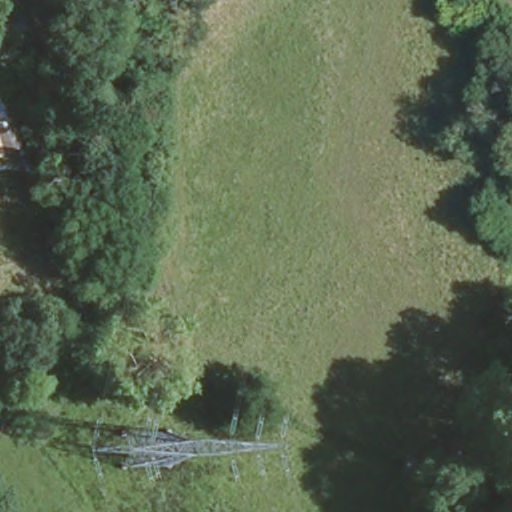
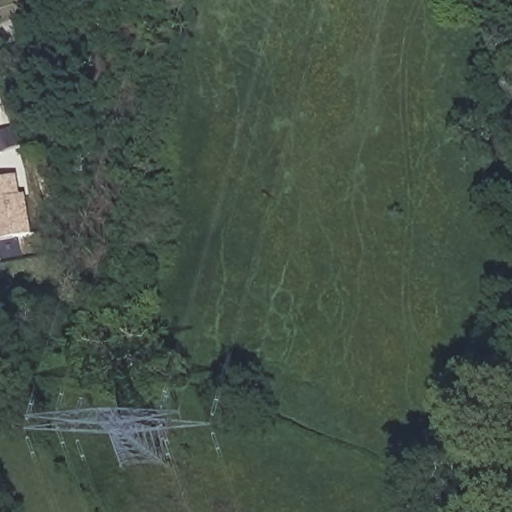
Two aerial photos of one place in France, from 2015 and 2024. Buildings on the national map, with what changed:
new [(24,197),(29,196),(36,236),(0,243),(0,180),(20,177),(24,197)]

